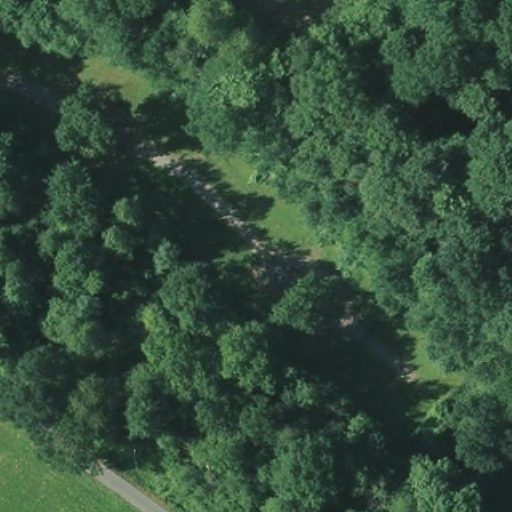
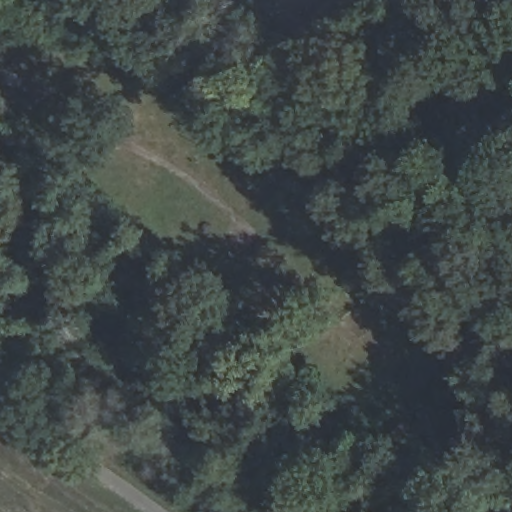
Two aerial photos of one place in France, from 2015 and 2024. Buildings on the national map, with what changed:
[]

